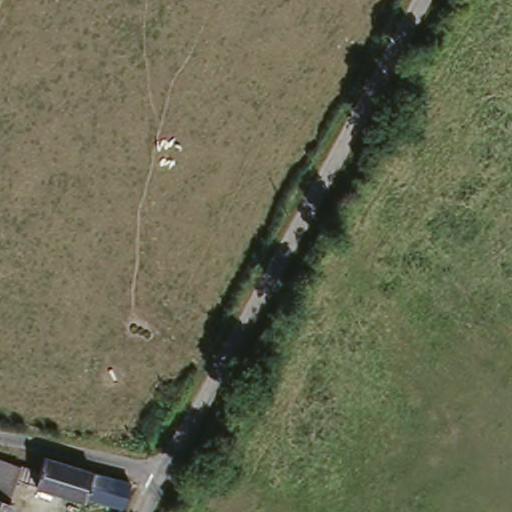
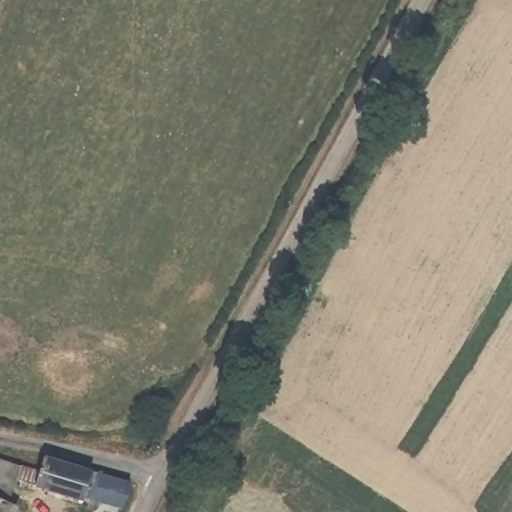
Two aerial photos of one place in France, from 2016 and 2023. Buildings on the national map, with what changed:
unchanged [(95,484),(91,493),(37,481),(39,471),(43,454),(137,473),(127,493),(95,484)]
unchanged [(37,481),(24,478),(16,501),(0,494),(0,464),(39,471),(37,481)]
unchanged [(12,512),(0,512),(0,494),(16,501),(12,512)]

